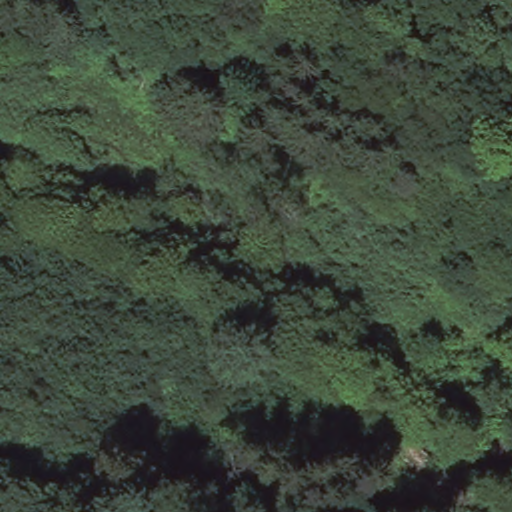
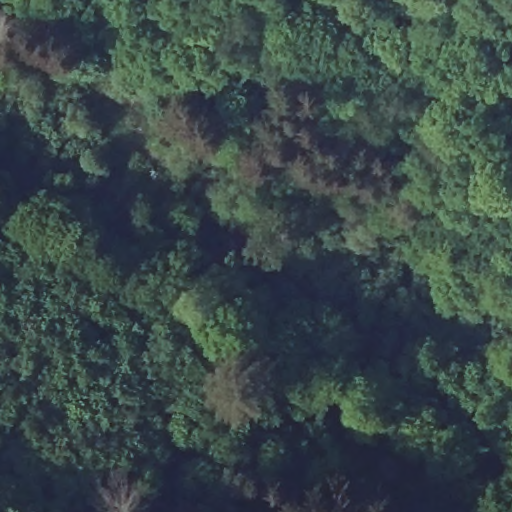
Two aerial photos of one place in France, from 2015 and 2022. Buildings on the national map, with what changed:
unchanged [(249,69),(232,105),(195,88),(210,52),(249,69)]

